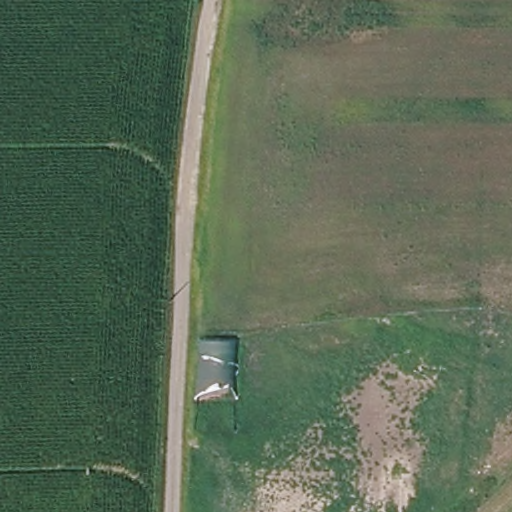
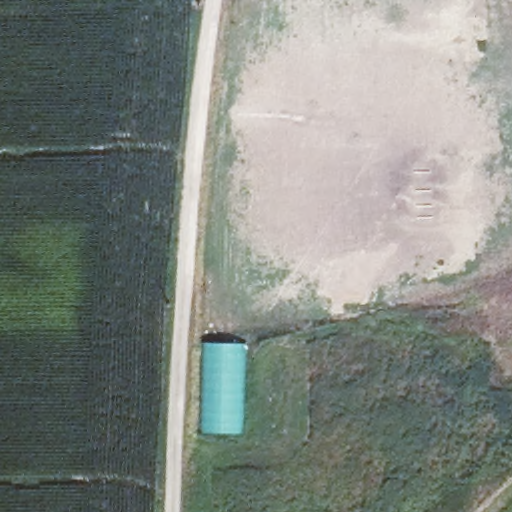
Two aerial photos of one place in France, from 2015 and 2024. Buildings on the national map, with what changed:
new [(200,431),(202,342),(245,343),(242,433),(200,431)]

